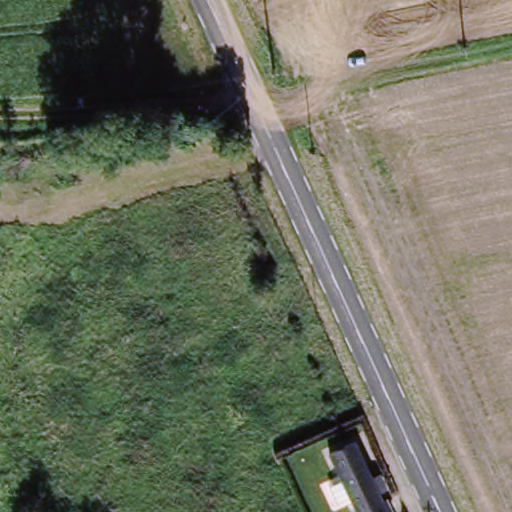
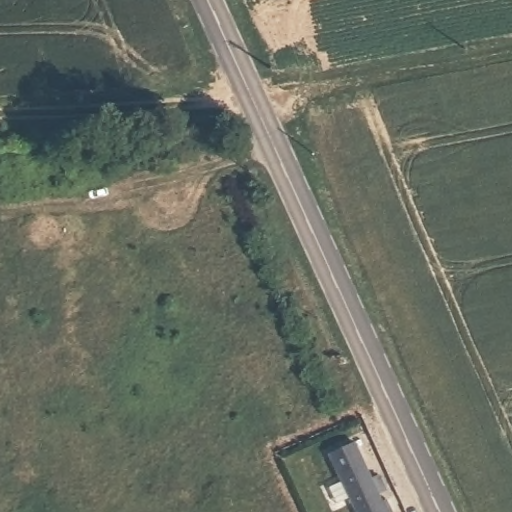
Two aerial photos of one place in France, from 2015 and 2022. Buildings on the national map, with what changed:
unchanged [(388,512),(357,512),(329,448),(355,436),(388,512)]

